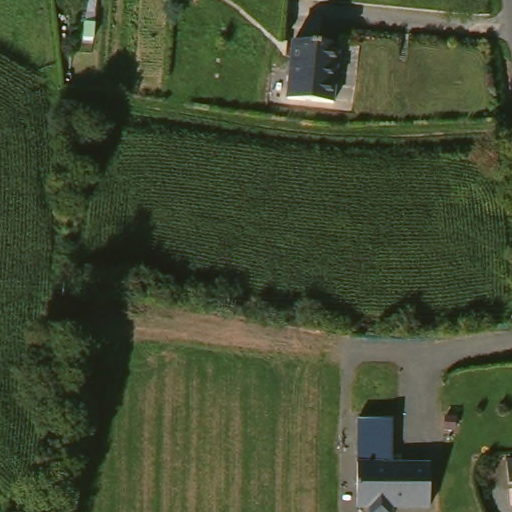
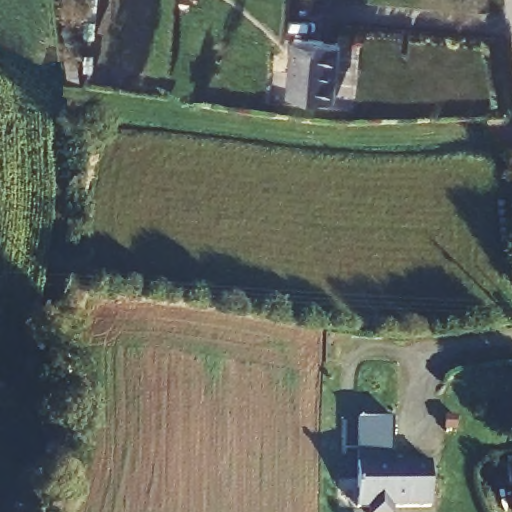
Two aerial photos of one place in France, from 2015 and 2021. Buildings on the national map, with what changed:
unchanged [(328,99),(283,97),(289,41),(344,45),(328,99)]
unchanged [(357,428),(358,417),(393,418),(393,461),(431,461),(432,504),(391,503),(391,512),(369,512),(367,505),(357,502),(358,451),(350,450),(351,428),(357,428)]
unchanged [(506,484),(506,458),(512,458),(512,482),(506,484)]

